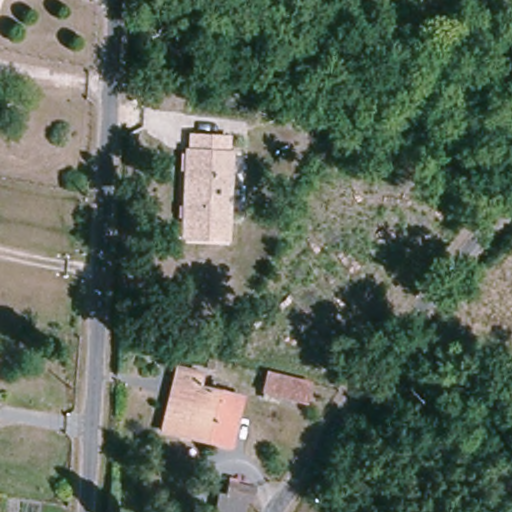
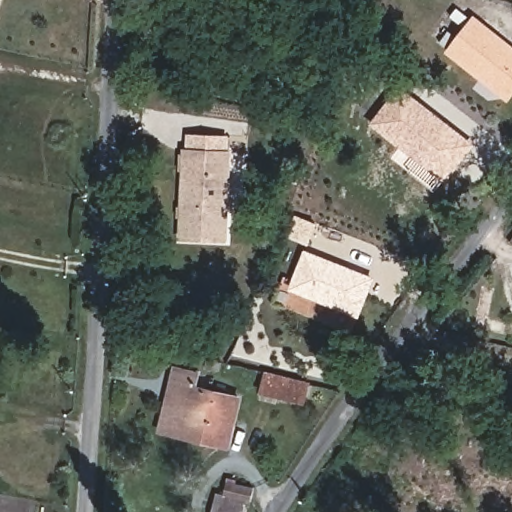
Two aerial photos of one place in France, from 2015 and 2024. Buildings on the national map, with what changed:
new [(447,52),(476,15),(512,44),(512,95),(508,99),(447,52)]
new [(372,124),(401,86),(477,144),(447,181),(372,124)]
unchanged [(230,148),(226,233),(184,233),(187,146),(230,148)]
new [(377,277),(360,318),(289,289),(305,249),(377,277)]
unchanged [(183,436),(159,431),(174,369),(201,375),(198,390),(237,399),(230,436),(228,445),(183,436)]
unchanged [(312,389),(307,403),(260,392),(266,377),(312,389)]
unchanged [(252,485),(250,502),(245,500),(242,512),(209,512),(217,480),(252,485)]

